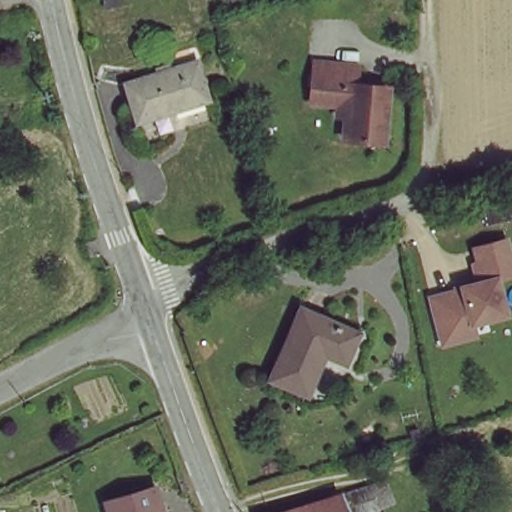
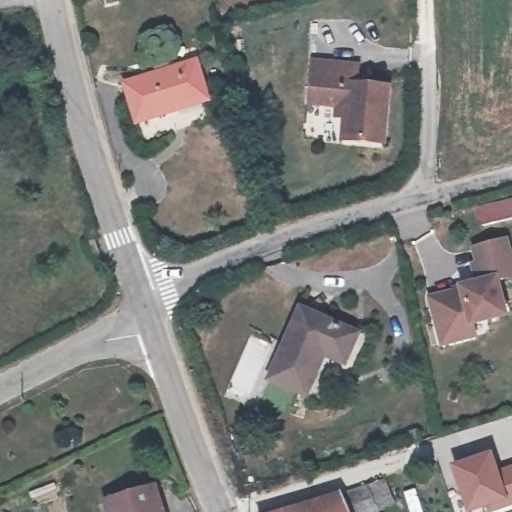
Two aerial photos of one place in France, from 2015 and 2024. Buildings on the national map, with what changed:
unchanged [(173,120),(141,130),(129,88),(200,68),(209,96),(212,108),(173,120)]
unchanged [(359,73),(359,91),(386,94),(382,152),(354,149),(357,113),(317,108),(320,69),(359,73)]
unchanged [(512,206),(512,215),(482,223),(479,209),(510,201),(512,206)]
unchanged [(512,235),(512,279),(502,282),(509,316),(475,325),(479,339),(440,350),(426,296),(476,283),(467,247),(512,235)]
unchanged [(351,366),(328,356),(312,397),(279,383),(309,315),(362,338),(351,366)]
new [(488,505),(470,512),(467,512),(454,469),(490,456),(497,475),(512,470),(512,504),(490,511),(488,505)]
unchanged [(388,511),(386,512),(343,512),(339,500),(380,487),(388,511)]
unchanged [(166,512),(115,512),(114,507),(161,495),(166,512)]
unchanged [(303,512),(339,500),(343,512),(303,512)]

